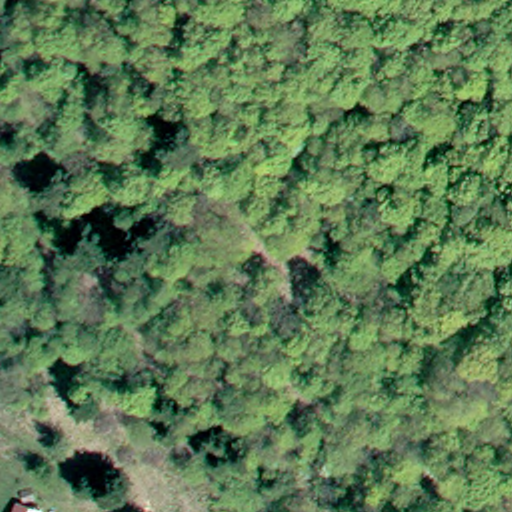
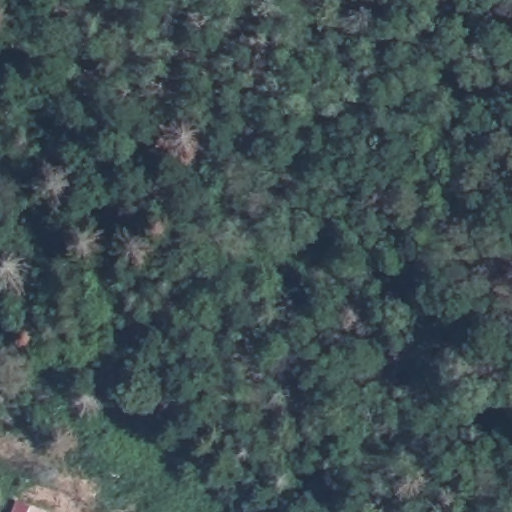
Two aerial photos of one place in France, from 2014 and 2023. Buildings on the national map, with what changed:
unchanged [(33,512),(12,512),(17,495),(36,501),(33,512)]

